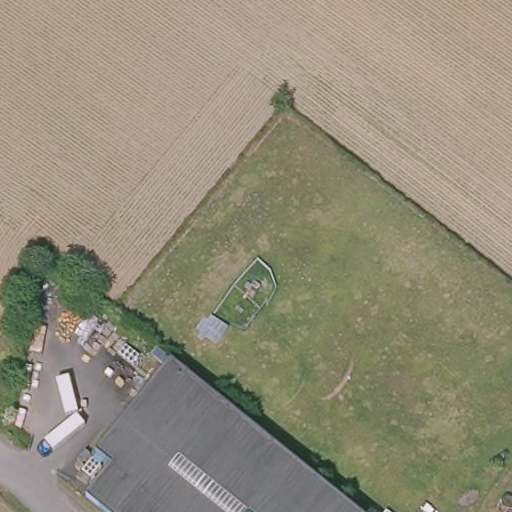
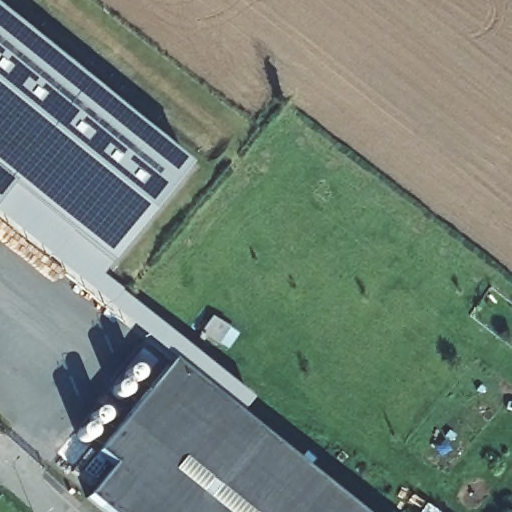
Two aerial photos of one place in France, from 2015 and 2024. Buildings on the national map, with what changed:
new [(183,167),(83,282),(4,212),(0,216),(0,23),(183,167)]
unchanged [(366,512),(112,512),(89,493),(114,461),(98,448),(173,355),(201,377),(366,512)]

